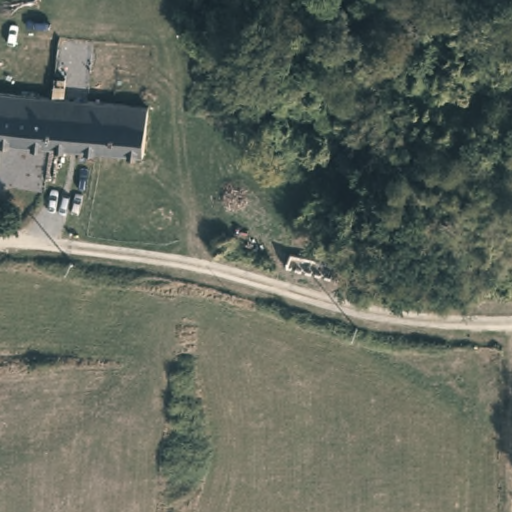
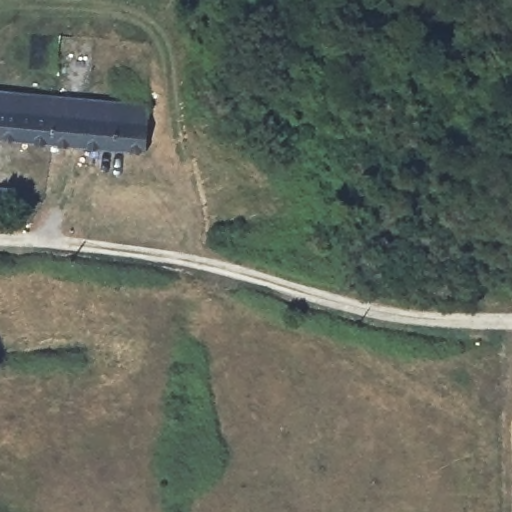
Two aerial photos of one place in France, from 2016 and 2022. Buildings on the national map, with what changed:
unchanged [(21,140),(0,138),(0,92),(26,94),(21,140)]
unchanged [(26,94),(61,97),(57,143),(21,140),(26,94)]
unchanged [(61,97),(151,105),(147,151),(57,143),(61,97)]
unchanged [(290,239),(317,247),(342,256),(338,269),(335,278),(284,262),(286,253),(290,239)]

